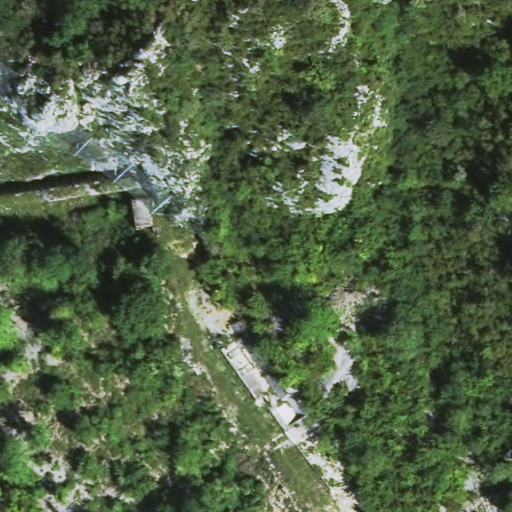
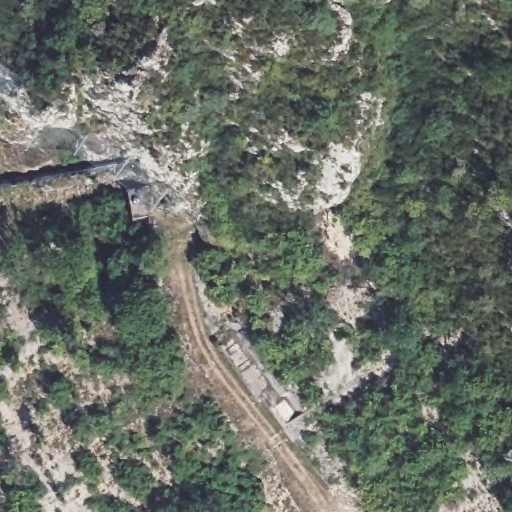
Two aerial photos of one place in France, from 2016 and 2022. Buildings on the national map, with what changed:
unchanged [(148,189),(150,217),(121,220),(119,191),(148,189)]
unchanged [(297,416),(280,429),(265,407),(283,394),(297,416)]

